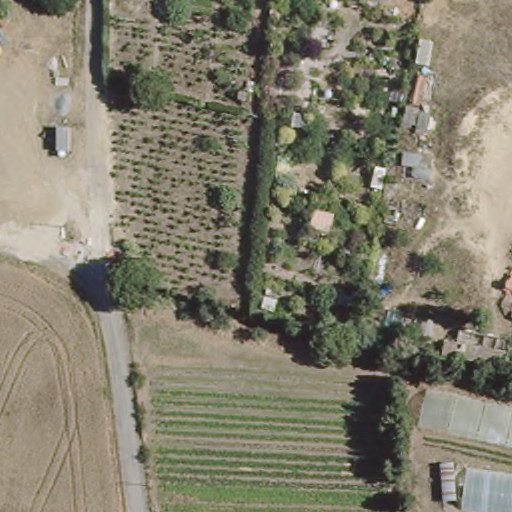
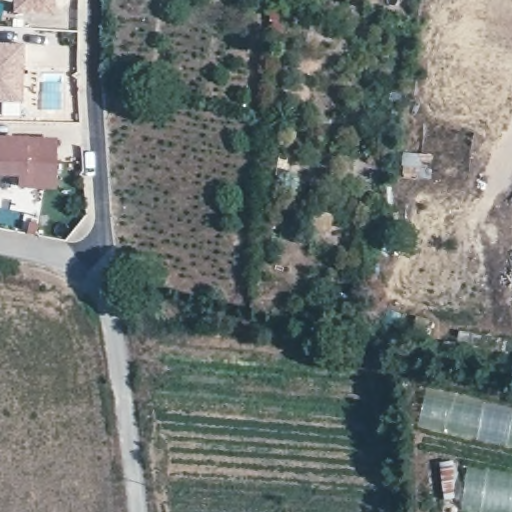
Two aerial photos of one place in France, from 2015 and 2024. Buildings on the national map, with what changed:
new [(15,2),(4,0),(55,0),(55,15),(15,14),(15,2)]
new [(25,104),(0,104),(0,45),(25,45),(25,104)]
new [(56,140),(56,190),(28,189),(20,189),(20,178),(0,178),(0,138),(28,139),(56,140)]
unchanged [(512,409),(512,450),(419,429),(429,389),(512,409)]
new [(455,460),(455,495),(442,495),(438,461),(455,460)]

